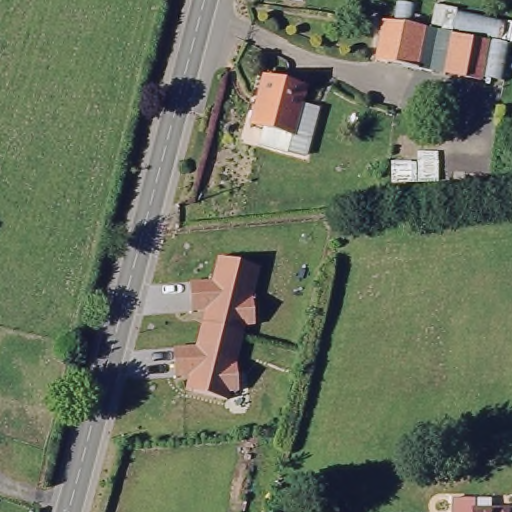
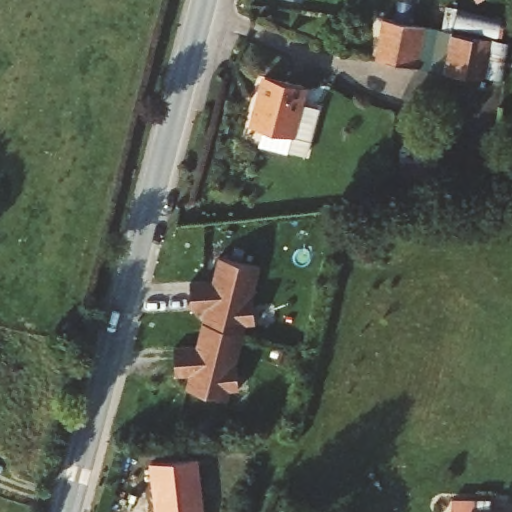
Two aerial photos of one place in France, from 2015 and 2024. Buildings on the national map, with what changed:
unchanged [(387,13),(441,26),(432,70),(378,57),(387,13)]
unchanged [(441,26),(488,37),(476,81),(432,70),(441,26)]
unchanged [(259,71),(299,81),(294,100),(310,104),(296,153),(249,141),(254,123),(246,121),(259,71)]
unchanged [(195,308),(182,309),(177,281),(202,280),(207,255),(248,265),(242,294),(248,314),(236,323),(234,331),(193,321),(195,308)]
unchanged [(188,346),(193,321),(234,331),(228,360),(235,379),(222,388),(220,397),(178,386),(180,374),(168,373),(164,346),(188,346)]
new [(199,457),(204,512),(155,512),(149,461),(199,457)]
unchanged [(490,495),(490,510),(468,511),(468,512),(448,512),(448,495),(490,495)]
unchanged [(468,512),(468,511),(512,510),(512,512),(468,512)]

